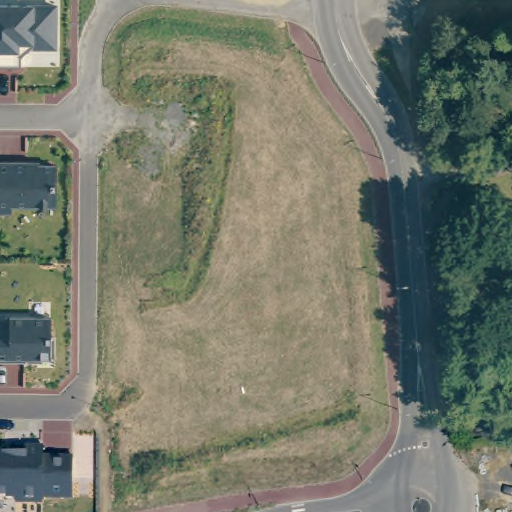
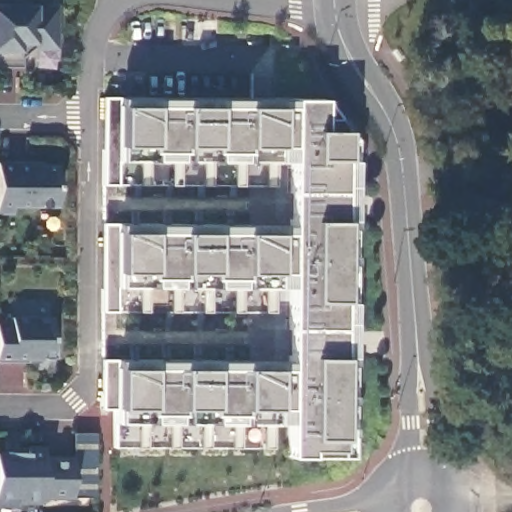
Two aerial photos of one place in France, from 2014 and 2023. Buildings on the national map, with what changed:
unchanged [(56,5),(56,48),(31,48),(20,57),(20,67),(0,67),(0,5),(56,5)]
new [(118,97),(322,98),(353,138),(351,456),(309,456),(288,456),(288,423),(115,422),(115,408),(115,407),(101,409),(101,359),(116,359),(290,362),(290,287),(116,286),(114,286),(114,310),(101,310),(103,223),(117,224),(291,225),(291,161),(117,158),(114,158),(115,184),(102,184),(104,97),(118,97)]
unchanged [(57,206),(12,205),(12,213),(0,213),(0,162),(29,162),(29,164),(57,165),(57,206)]
unchanged [(9,320),(9,316),(53,316),(53,356),(39,356),(39,361),(0,361),(0,320),(9,320)]
unchanged [(25,452),(25,447),(42,447),(42,457),(72,457),(72,497),(42,497),(42,502),(15,502),(16,497),(0,497),(0,452),(25,452)]

